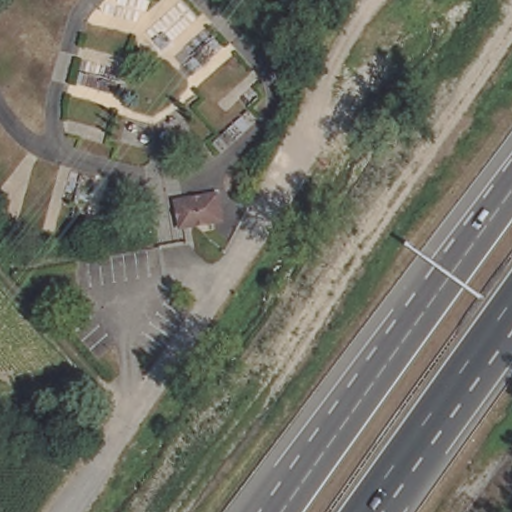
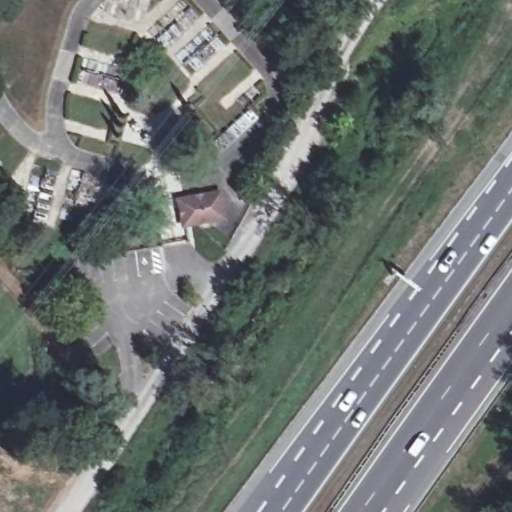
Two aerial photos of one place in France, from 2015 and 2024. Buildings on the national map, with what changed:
unchanged [(178,201),(221,190),(232,228),(187,235),(178,201)]

